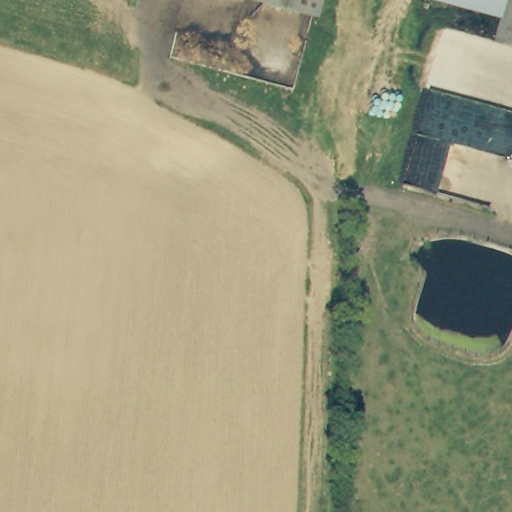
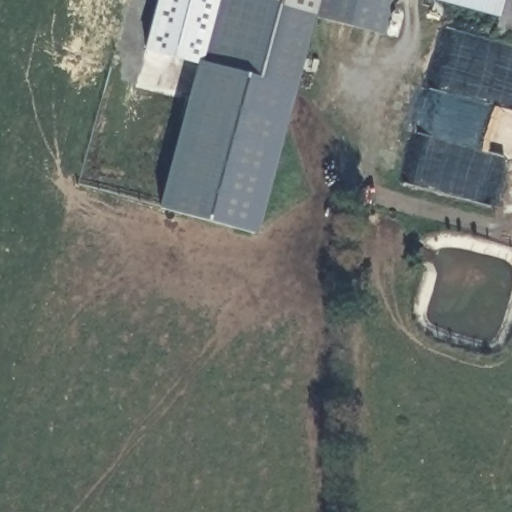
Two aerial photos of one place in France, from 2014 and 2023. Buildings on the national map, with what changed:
new [(317,17),(257,234),(158,208),(215,0),(265,0),(314,13),(317,0),(394,0),(385,35),(317,17)]
unchanged [(265,0),(317,0),(314,13),(265,0)]
unchanged [(433,0),(506,0),(502,17),(433,0)]
unchanged [(497,36),(502,17),(506,0),(512,0),(512,39),(497,36)]

